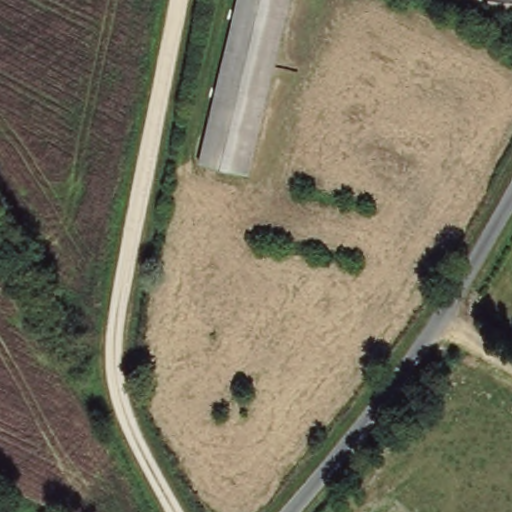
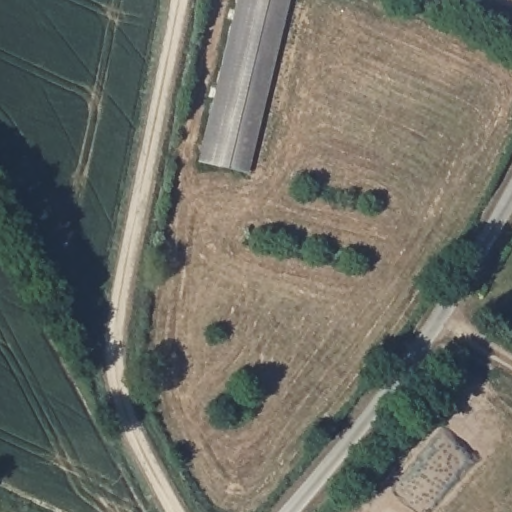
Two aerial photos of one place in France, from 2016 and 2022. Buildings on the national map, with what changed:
unchanged [(251,174),(206,162),(246,0),(293,0),(251,174)]

